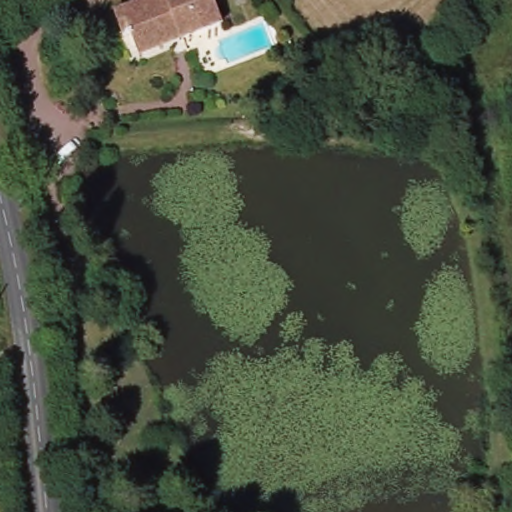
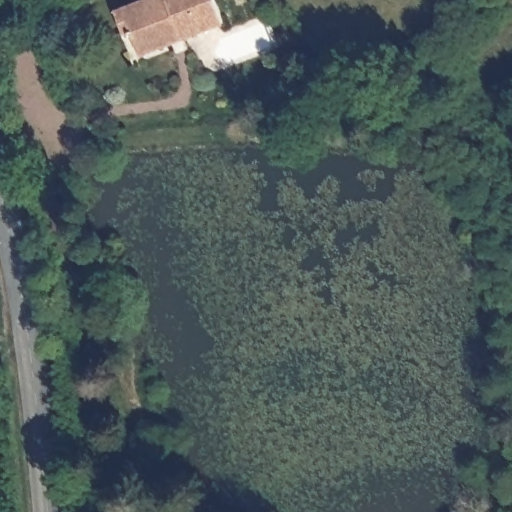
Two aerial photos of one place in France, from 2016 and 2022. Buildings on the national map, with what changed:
unchanged [(135,48),(127,24),(118,28),(111,6),(127,0),(215,0),(221,20),(135,48)]

